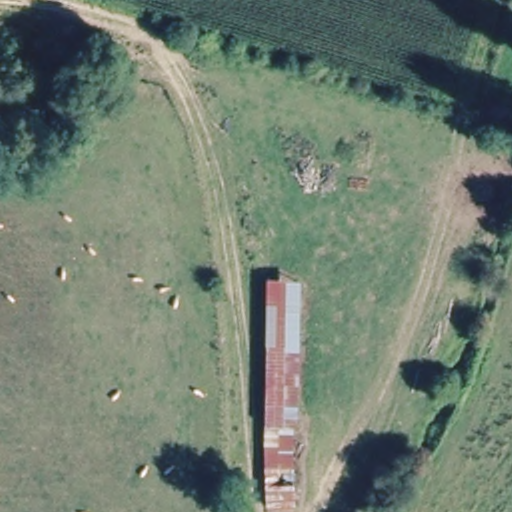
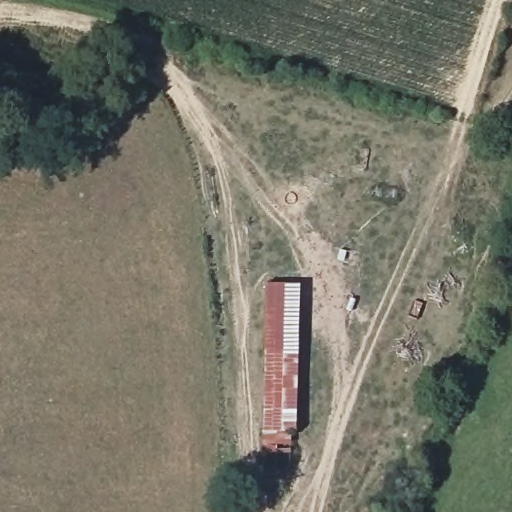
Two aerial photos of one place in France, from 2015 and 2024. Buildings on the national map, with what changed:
unchanged [(264,286),(302,287),(295,512),(264,512),(264,286)]

